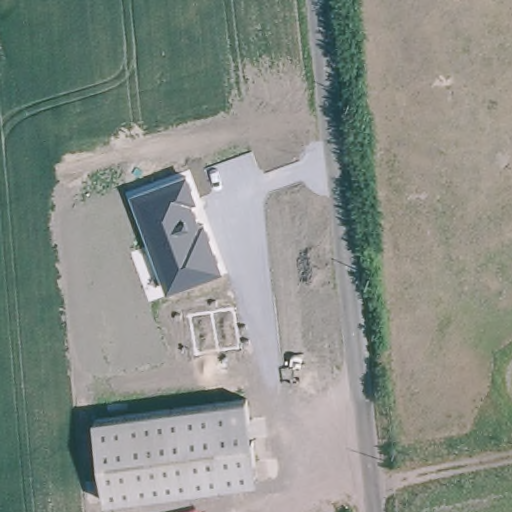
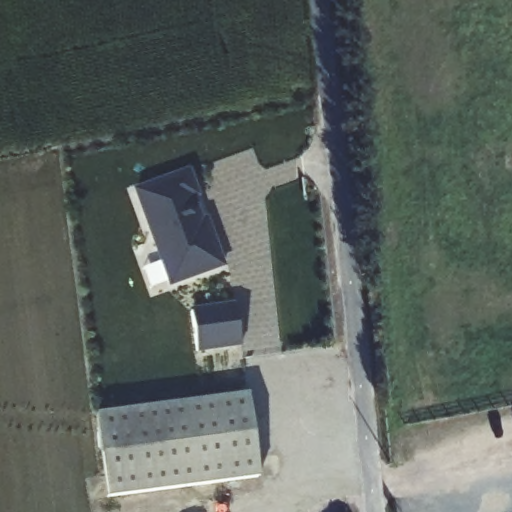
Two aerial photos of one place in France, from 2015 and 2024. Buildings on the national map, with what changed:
unchanged [(189,168),(199,197),(194,199),(201,216),(207,217),(226,268),(168,289),(133,190),(189,168)]
new [(196,353),(190,311),(234,305),(241,349),(196,353)]
unchanged [(219,478),(104,492),(96,408),(247,392),(256,478),(219,478)]

